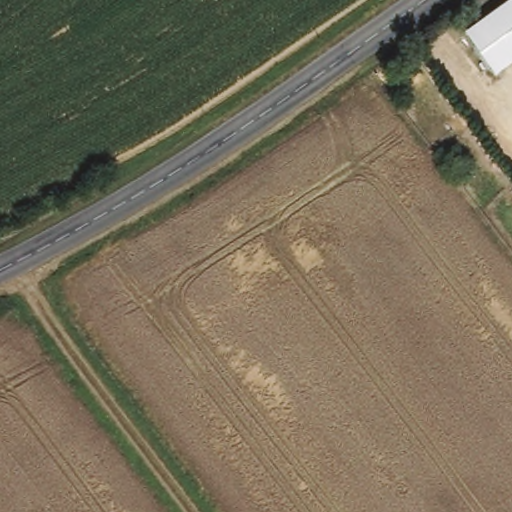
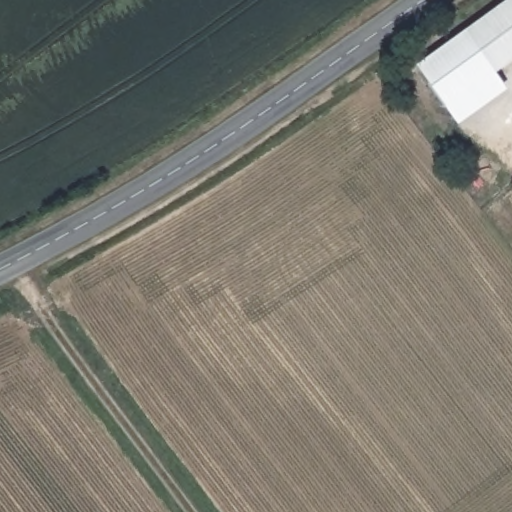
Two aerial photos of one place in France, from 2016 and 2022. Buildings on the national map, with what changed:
unchanged [(512,1),(512,65),(497,76),(466,34),(512,1)]
new [(497,76),(510,91),(460,126),(418,66),(466,34),(497,76)]

